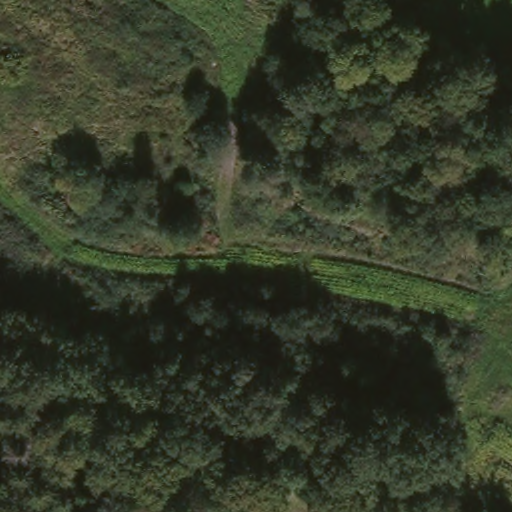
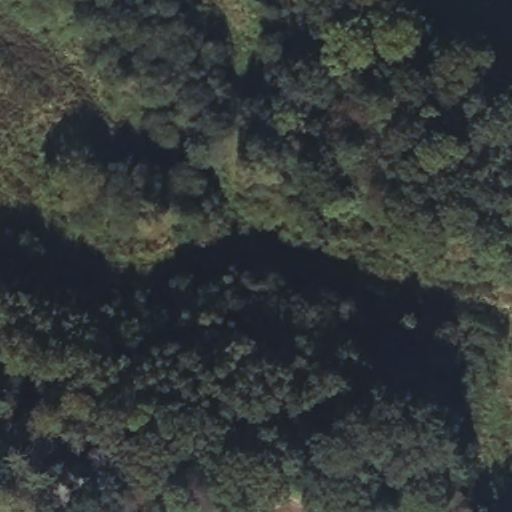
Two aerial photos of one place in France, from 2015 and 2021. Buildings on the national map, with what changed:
[]

